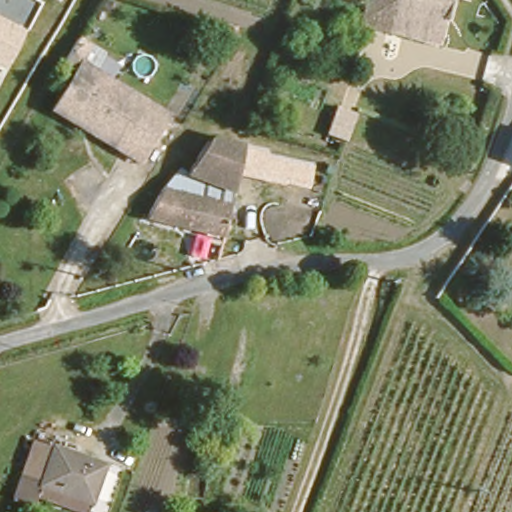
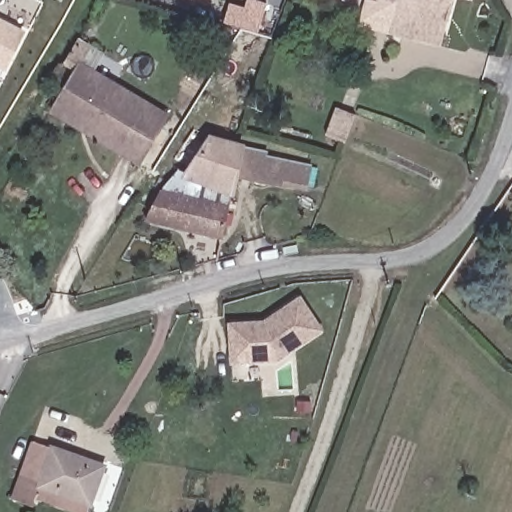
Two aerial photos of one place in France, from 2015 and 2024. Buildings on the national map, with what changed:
unchanged [(382,28),(382,25),(366,20),(371,0),(449,0),(438,43),(382,28)]
unchanged [(6,68),(0,65),(0,21),(24,33),(6,68)]
unchanged [(71,79),(56,71),(70,48),(84,56),(75,71),(88,78),(143,109),(162,120),(157,129),(134,168),(80,136),(48,119),(53,111),(71,79)]
unchanged [(235,175),(223,238),(145,220),(166,182),(177,170),(187,173),(210,138),(267,151),(267,156),(287,162),(313,169),(308,187),(282,181),(281,186),(235,175)]
new [(276,362),(230,363),(229,321),(264,318),(299,293),(325,331),(276,362)]
unchanged [(31,492),(29,500),(8,493),(26,440),(42,446),(43,442),(98,461),(85,500),(81,510),(31,492)]

